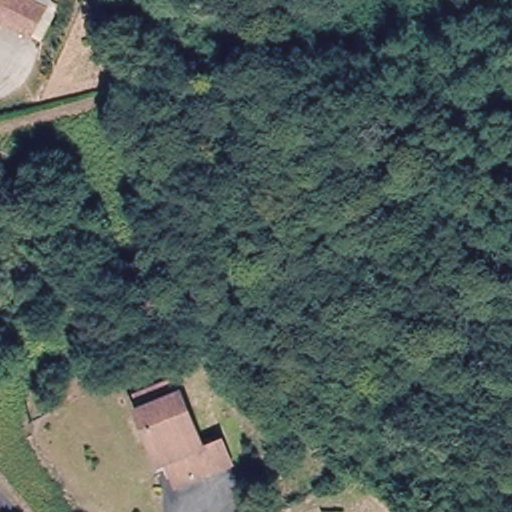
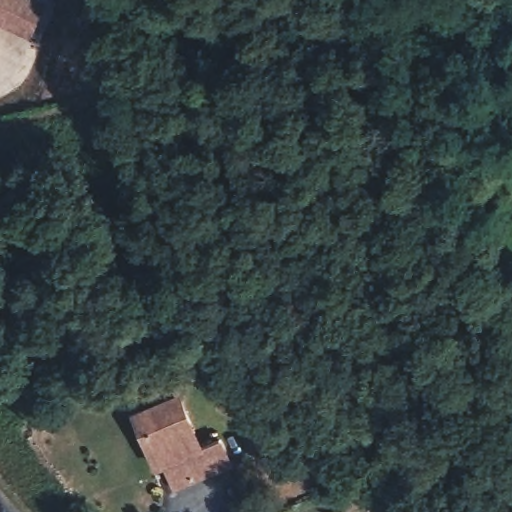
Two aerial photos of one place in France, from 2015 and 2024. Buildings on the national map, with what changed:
unchanged [(0,17),(0,0),(9,0),(0,17)]
unchanged [(42,10),(30,36),(0,21),(0,17),(9,0),(23,0),(42,10)]
unchanged [(221,435),(234,458),(177,481),(167,459),(160,462),(135,407),(140,406),(136,391),(172,375),(179,389),(204,440),(221,435)]

